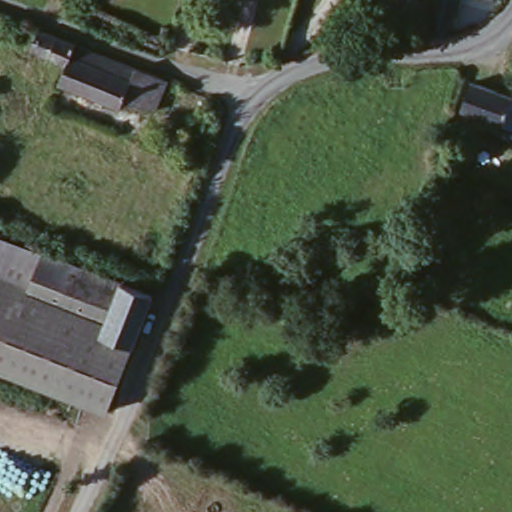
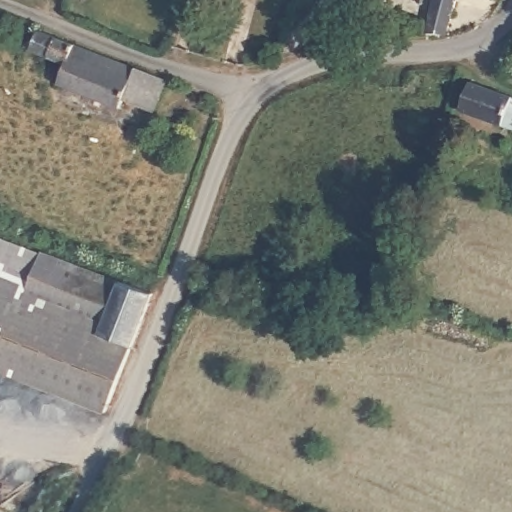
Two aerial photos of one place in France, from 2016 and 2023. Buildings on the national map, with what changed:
unchanged [(454,0),(444,40),(428,36),(438,0),(454,0)]
unchanged [(152,110),(125,96),(121,106),(58,81),(66,61),(24,44),(26,37),(20,30),(25,21),(37,27),(162,79),(152,110)]
unchanged [(512,96),(512,128),(472,115),(482,86),(512,96)]
unchanged [(101,331),(132,346),(102,417),(0,373),(0,232),(119,286),(101,331)]
unchanged [(152,301),(132,346),(101,331),(119,286),(152,301)]

